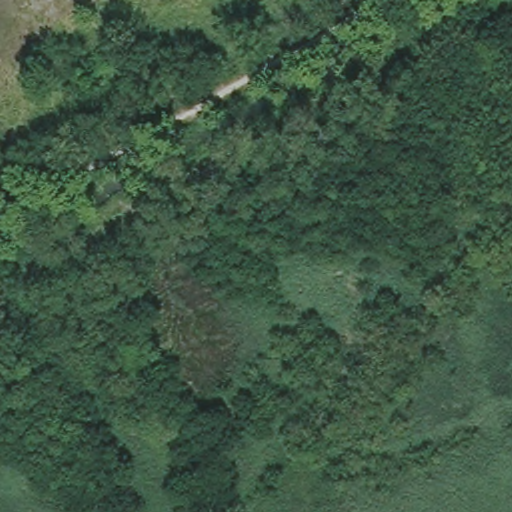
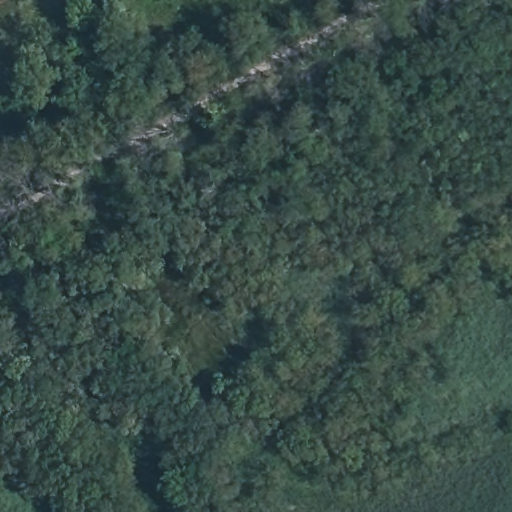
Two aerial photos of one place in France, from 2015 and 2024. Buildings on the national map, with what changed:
unchanged [(92,103),(97,109),(80,118),(68,93),(97,78),(106,97),(92,103)]

